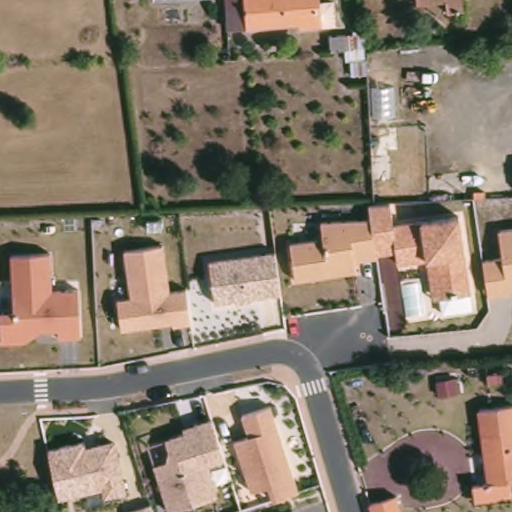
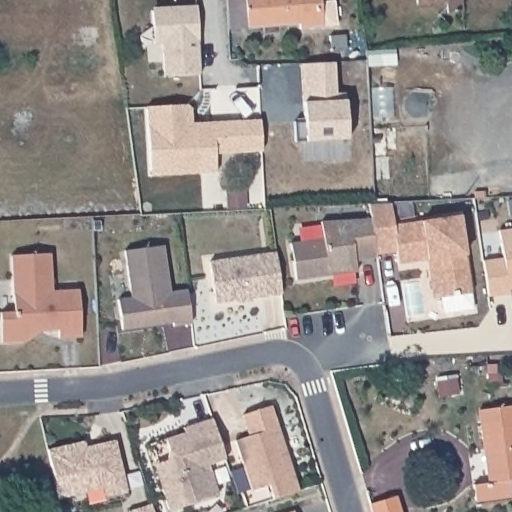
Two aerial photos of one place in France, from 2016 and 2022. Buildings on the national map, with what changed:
unchanged [(322,2),(335,0),(337,21),(325,22),(325,24),(302,25),(302,21),(232,26),(229,0),(322,0),(322,2)]
unchanged [(460,15),(449,16),(447,1),(412,4),(411,0),(458,0),(460,15)]
new [(164,75),(162,44),(153,44),(151,6),(196,4),(200,74),(164,75)]
unchanged [(331,34),(347,33),(367,31),(368,41),(349,42),(349,46),(333,48),(331,34)]
new [(347,139),(305,141),(294,141),(293,121),(304,121),(303,100),(301,63),(334,62),(336,92),(345,92),(345,99),(347,139)]
new [(150,177),(146,106),(192,104),(193,122),(260,119),(262,151),(215,153),(215,173),(150,177)]
unchanged [(484,193),(484,200),(473,200),(473,194),(484,193)]
unchanged [(439,296),(432,296),(427,259),(399,263),(397,254),(355,261),(355,269),(296,279),(291,242),(324,237),(323,222),(371,217),(369,203),(392,201),(397,223),(418,221),(459,215),(465,255),(471,307),(443,312),(439,296)]
unchanged [(501,255),(498,230),(512,227),(512,289),(508,289),(509,293),(488,297),(480,259),(501,255)]
unchanged [(116,299),(129,297),(122,251),(164,245),(171,289),(187,287),(193,323),(173,327),(168,321),(121,328),(116,299)]
unchanged [(207,260),(273,251),(279,294),(215,303),(207,260)]
unchanged [(14,309),(9,255),(51,254),(54,290),(81,289),(83,336),(57,337),(56,329),(36,331),(25,340),(0,342),(0,310),(14,309)]
unchanged [(236,439),(249,435),(242,415),(271,406),(296,490),(270,499),(264,484),(251,489),(236,439)]
unchanged [(509,496),(472,500),(470,485),(485,483),(476,412),(512,407),(512,480),(507,480),(509,496)]
unchanged [(148,441),(185,429),(183,425),(211,417),(223,460),(205,465),(216,495),(168,509),(148,441)]
unchanged [(47,451),(85,441),(87,448),(113,440),(127,489),(103,495),(100,487),(58,499),(47,451)]
unchanged [(396,512),(369,512),(368,508),(393,501),(396,512)]
new [(153,512),(128,512),(128,510),(151,503),(153,512)]
unchanged [(293,512),(279,512),(292,508),(293,512)]

